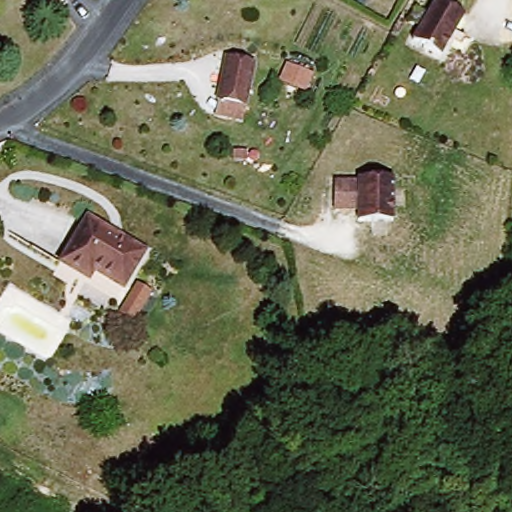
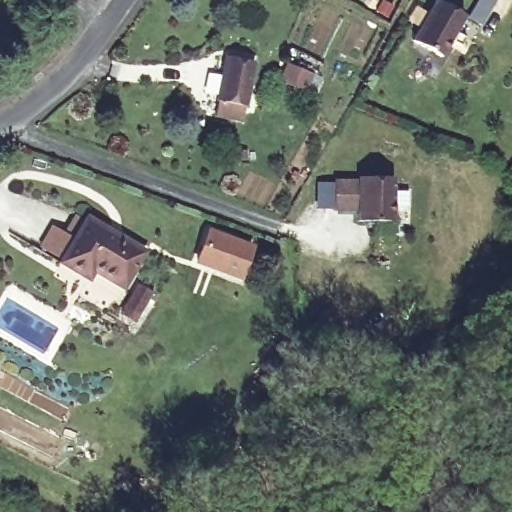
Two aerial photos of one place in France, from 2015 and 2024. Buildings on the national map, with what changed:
unchanged [(465,59),(450,50),(443,60),(417,44),(439,1),(467,16),(460,31),(475,38),(465,59)]
unchanged [(221,56),(255,62),(244,116),(210,110),(221,56)]
unchanged [(397,176),(397,224),(367,224),(367,212),(341,212),(341,183),(365,184),(365,176),(397,176)]
unchanged [(67,262),(90,217),(154,253),(134,291),(87,265),(83,272),(67,262)]
new [(213,230),(255,245),(243,277),(202,262),(213,230)]
unchanged [(159,296),(144,322),(132,316),(147,289),(159,296)]

